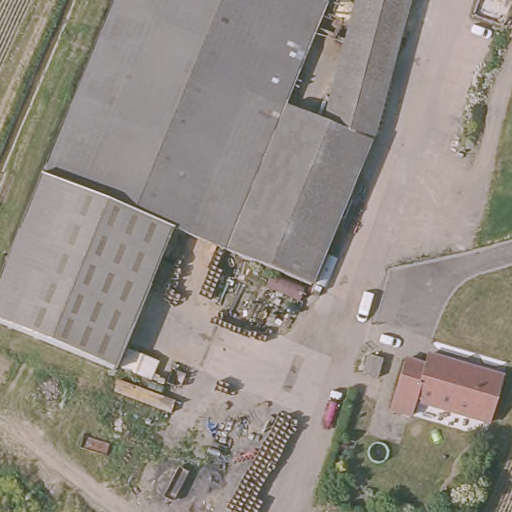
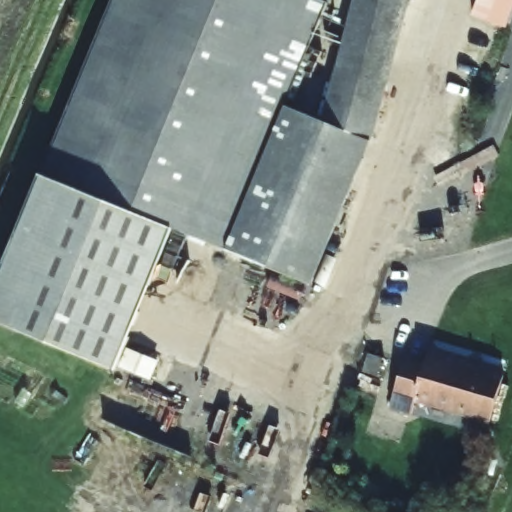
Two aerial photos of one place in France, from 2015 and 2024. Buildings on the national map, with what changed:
unchanged [(386,85),(373,134),(346,199),(187,136),(147,119),(75,91),(111,0),(329,0),(328,2),(286,105),(324,121),(337,72),(386,85)]
unchanged [(344,47),(356,0),(408,0),(392,61),(344,47)]
new [(473,15),(478,0),(512,0),(512,11),(506,27),(473,15)]
unchanged [(344,47),(392,61),(386,85),(337,72),(344,47)]
unchanged [(0,314),(0,272),(75,91),(147,119),(187,136),(346,199),(311,285),(172,228),(119,359),(30,325),(0,314)]
unchanged [(119,359),(115,370),(0,323),(0,314),(30,325),(119,359)]
unchanged [(127,350),(157,363),(152,372),(150,378),(121,366),(122,361),(127,350)]
unchanged [(407,415),(385,409),(400,359),(420,365),(422,354),(499,378),(485,423),(411,401),(407,415)]
unchanged [(384,358),(378,377),(363,373),(368,355),(384,358)]

